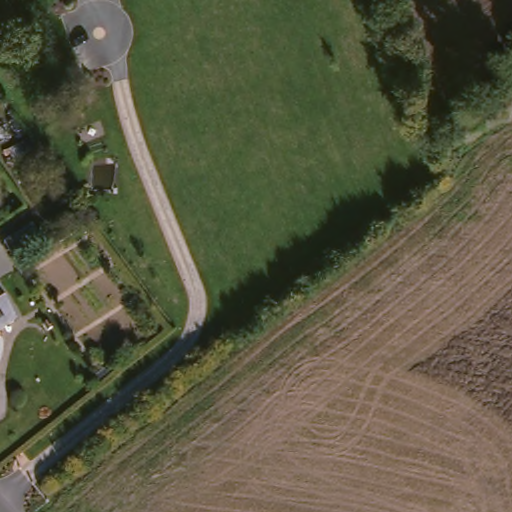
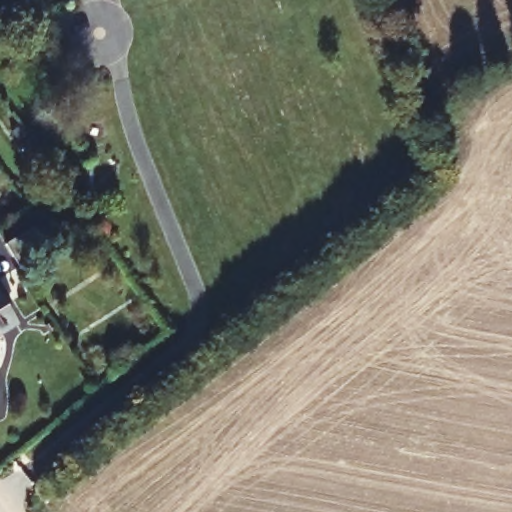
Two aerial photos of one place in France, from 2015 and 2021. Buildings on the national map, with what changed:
unchanged [(1,247),(29,230),(34,239),(59,224),(84,209),(92,224),(68,239),(16,271),(1,247)]
unchanged [(0,335),(0,310),(12,329),(0,335)]

